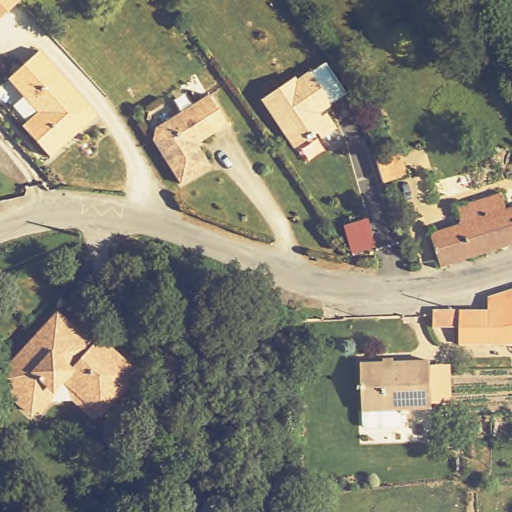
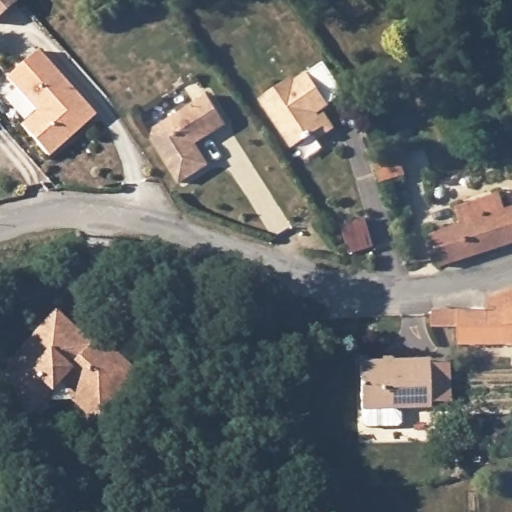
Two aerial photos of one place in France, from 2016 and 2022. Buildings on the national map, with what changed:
unchanged [(39,55),(97,118),(50,161),(21,130),(33,117),(5,86),(39,55)]
unchanged [(312,121),(316,126),(321,123),(330,135),(331,136),(323,141),(318,145),(314,140),(292,156),(258,110),(283,91),(288,87),(291,90),(321,68),(343,98),(312,121)]
unchanged [(155,130),(207,99),(224,130),(197,146),(210,168),(179,186),(154,144),(155,130)]
unchanged [(409,169),(416,189),(389,198),(386,177),(409,169)]
unchanged [(505,196),(509,205),(512,205),(512,251),(502,254),(484,205),(505,196)]
unchanged [(432,245),(462,230),(456,216),(468,211),(484,205),(502,254),(445,277),(432,245)]
unchanged [(471,351),(467,333),(460,334),(456,320),(503,306),(499,294),(512,290),(512,342),(471,351)]
unchanged [(57,399),(47,402),(39,410),(37,414),(29,407),(26,411),(0,387),(0,370),(52,313),(87,346),(94,338),(104,348),(132,373),(96,412),(89,419),(67,399),(57,399)]
unchanged [(433,355),(440,402),(409,406),(411,420),(408,424),(377,429),(373,426),(364,365),(433,355)]

